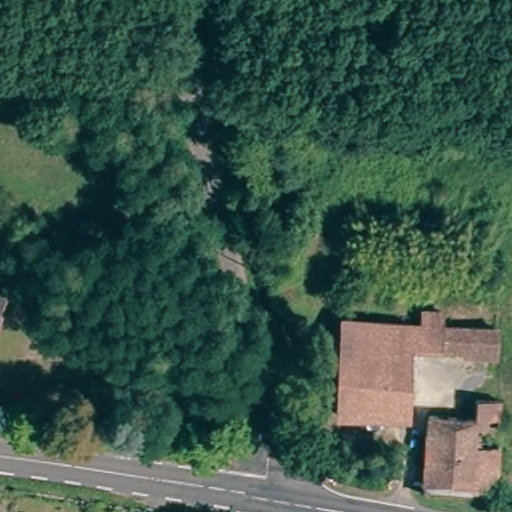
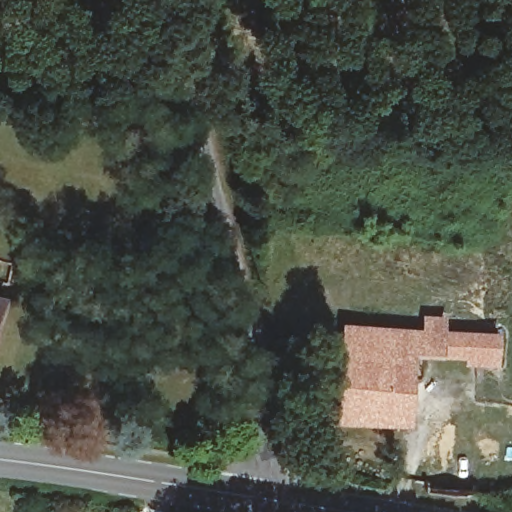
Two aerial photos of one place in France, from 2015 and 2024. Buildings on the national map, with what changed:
unchanged [(425,334),(426,318),(445,319),(444,335),(476,337),(499,339),(498,365),(470,363),(467,358),(409,355),(405,424),(338,420),(345,329),(425,334)]
demolished [(478,423),(480,403),(505,404),(500,493),(426,487),(432,420),(478,423)]

